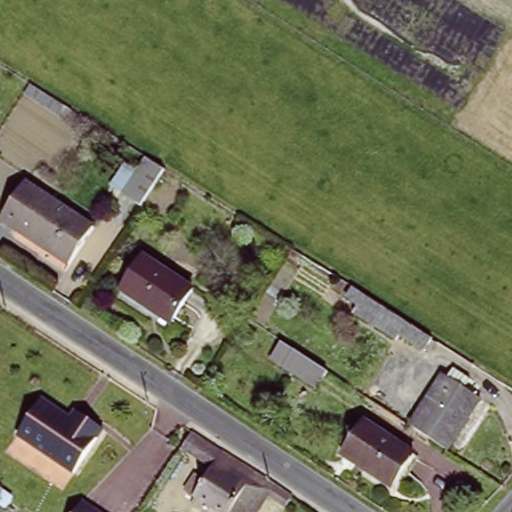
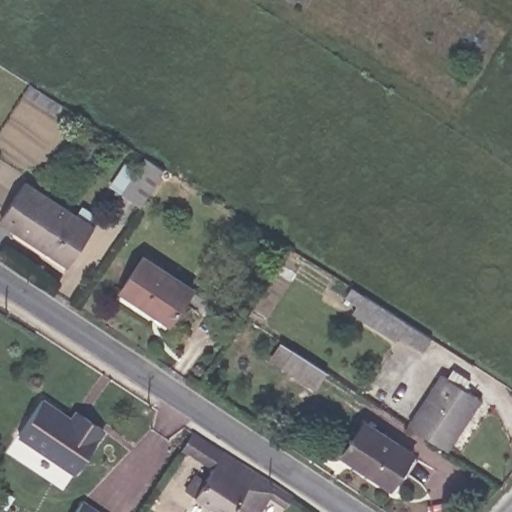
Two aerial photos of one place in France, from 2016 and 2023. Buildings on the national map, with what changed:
unchanged [(26,93),(32,84),(75,111),(68,120),(26,93)]
unchanged [(142,159),(164,174),(140,208),(118,194),(142,159)]
unchanged [(25,182),(93,229),(68,266),(0,219),(25,182)]
unchanged [(143,257),(190,290),(168,321),(140,300),(137,303),(120,291),(143,257)]
unchanged [(353,286),(432,336),(424,348),(400,333),(396,339),(353,311),(357,304),(346,297),(353,286)]
unchanged [(315,388),(281,367),(271,360),(283,342),(293,348),(327,371),(315,388)]
unchanged [(442,379),(446,381),(453,370),(472,382),(464,394),(480,403),(446,453),(409,428),(442,379)]
unchanged [(40,400),(70,419),(74,412),(81,416),(100,428),(71,472),(16,436),(40,400)]
unchanged [(365,420),(412,453),(390,485),(342,452),(365,420)]
unchanged [(263,501),(256,512),(212,512),(191,498),(211,469),(188,454),(198,438),(221,453),(266,484),(272,488),(287,497),(290,500),(285,510),(281,507),(265,497),(263,501)]
unchanged [(88,512),(76,512),(80,507),(88,512)]
unchanged [(0,512),(0,510),(3,512),(0,512)]

